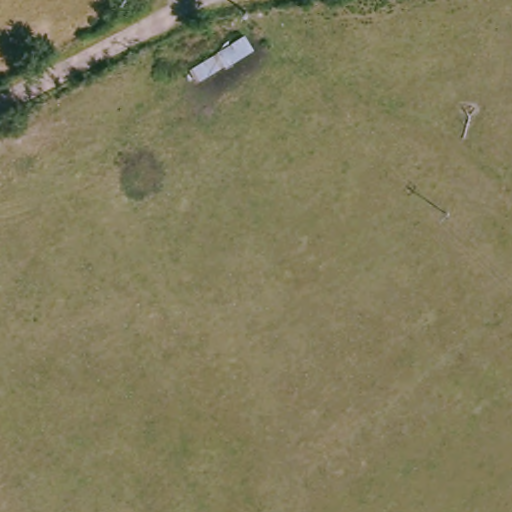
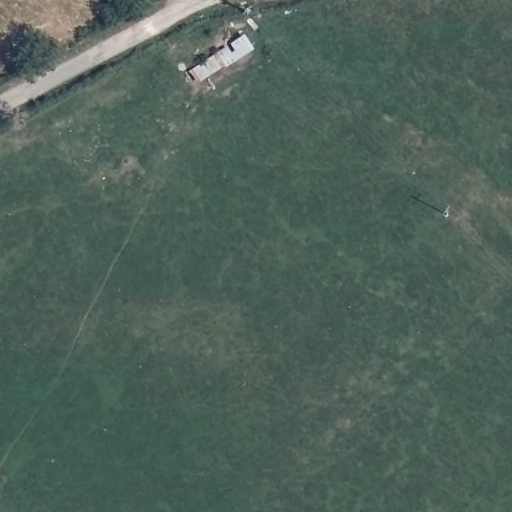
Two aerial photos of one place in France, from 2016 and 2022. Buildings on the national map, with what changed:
unchanged [(248,8),(247,0),(256,0),(257,6),(248,8)]

